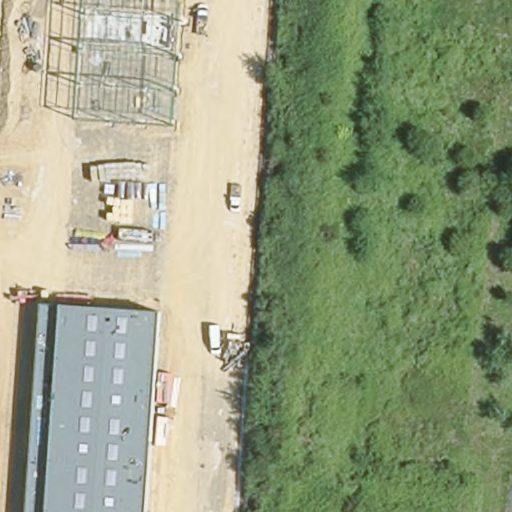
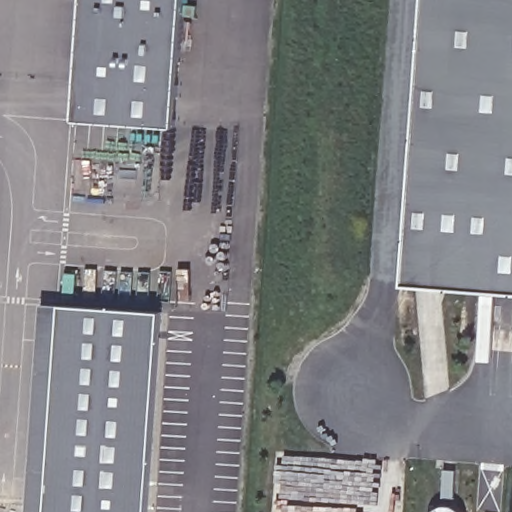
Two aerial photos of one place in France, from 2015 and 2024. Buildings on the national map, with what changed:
unchanged [(74,119),(84,0),(184,0),(176,125),(74,119)]
new [(406,284),(426,0),(512,0),(512,289),(406,284)]
unchanged [(147,512),(26,512),(41,303),(163,312),(147,512)]

